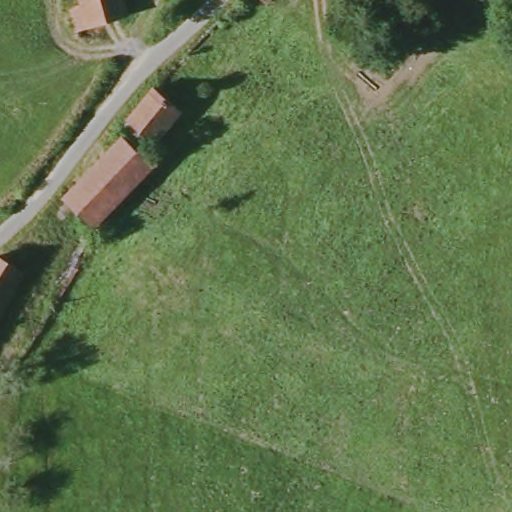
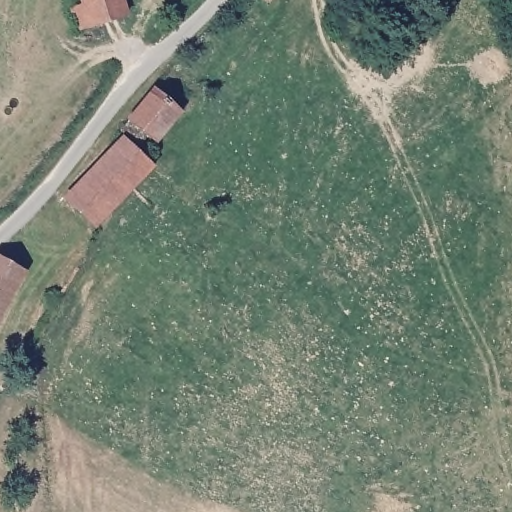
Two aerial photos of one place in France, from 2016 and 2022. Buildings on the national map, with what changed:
unchanged [(107,22),(110,44),(76,36),(68,2),(74,0),(120,0),(125,18),(107,22)]
unchanged [(257,0),(264,0),(261,3),(257,0)]
unchanged [(174,99),(181,107),(142,150),(117,129),(126,120),(123,116),(156,84),(174,99)]
unchanged [(138,156),(148,164),(93,225),(58,196),(115,137),(138,156)]
unchanged [(25,274),(0,315),(0,258),(25,274)]

